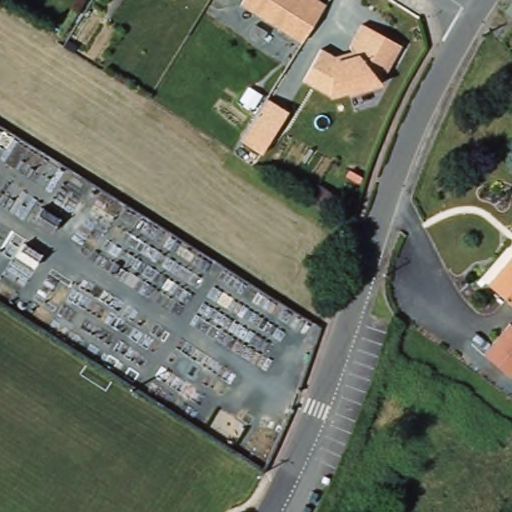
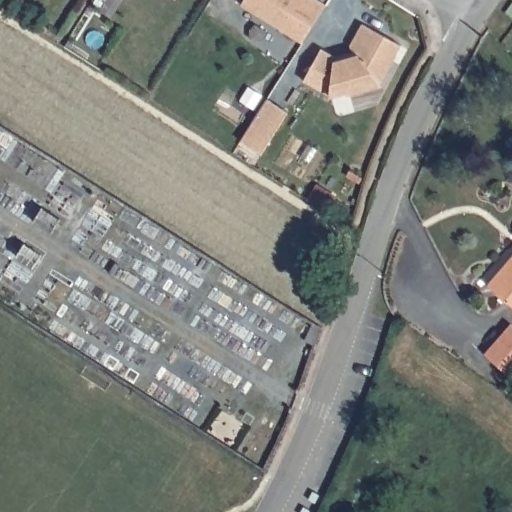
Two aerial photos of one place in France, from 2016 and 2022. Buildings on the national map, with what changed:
unchanged [(241,0),(313,0),(323,5),(299,43),(238,6),(241,0)]
unchanged [(336,57),(354,53),(350,36),(362,17),(406,45),(375,94),(348,100),(345,92),(323,99),(300,82),(321,47),(336,57)]
unchanged [(237,140),(263,97),(287,112),(260,155),(237,140)]
unchanged [(512,262),(512,306),(490,286),(512,262)]
unchanged [(487,352),(512,325),(512,373),(511,374),(487,352)]

